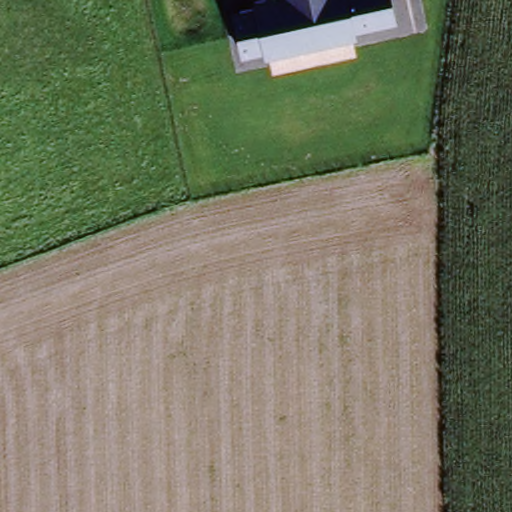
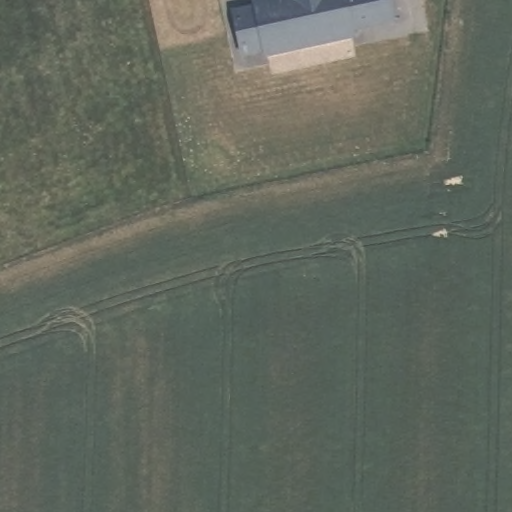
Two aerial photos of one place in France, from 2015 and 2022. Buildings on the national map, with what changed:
unchanged [(357,36),(357,43),(264,63),(261,58),(240,63),(230,15),(252,11),(250,4),(273,0),(390,0),(397,26),(357,36)]

